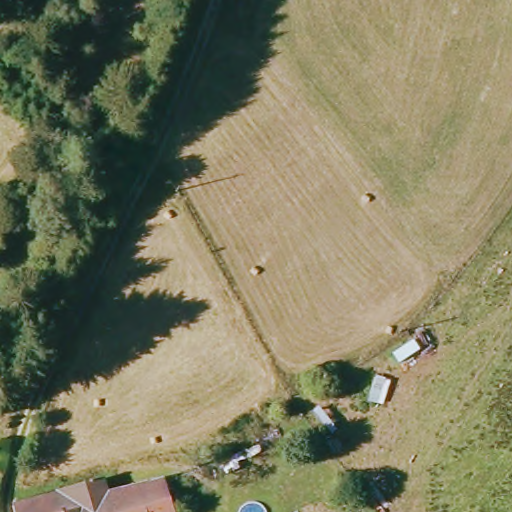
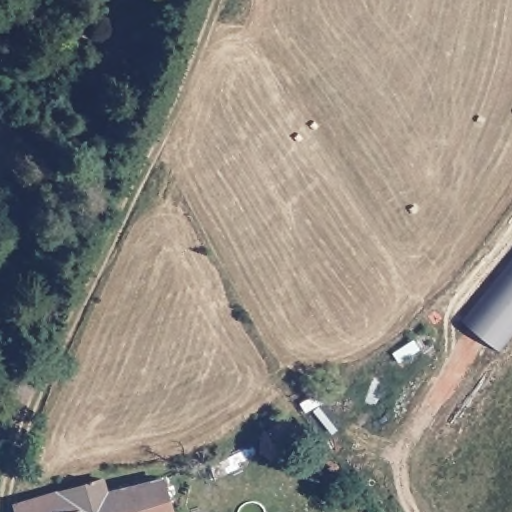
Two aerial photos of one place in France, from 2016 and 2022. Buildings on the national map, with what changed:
new [(464,322),(512,264),(512,335),(498,353),(464,322)]
unchanged [(101,480),(106,495),(163,481),(171,512),(15,512),(14,506),(101,480)]

